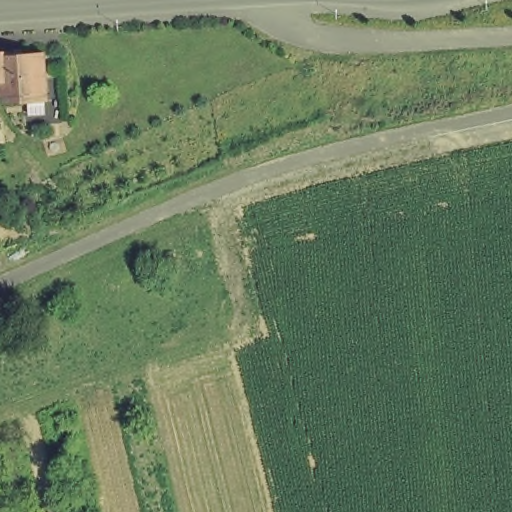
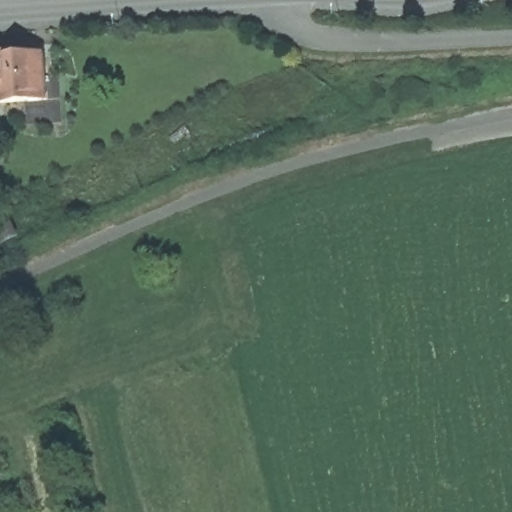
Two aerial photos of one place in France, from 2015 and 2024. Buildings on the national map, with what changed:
unchanged [(5,82),(0,82),(0,53),(17,52),(18,55),(49,54),(51,92),(51,93),(52,101),(32,102),(5,103),(5,82)]

